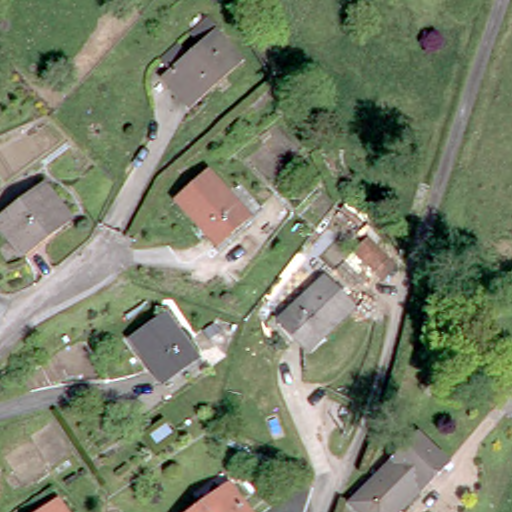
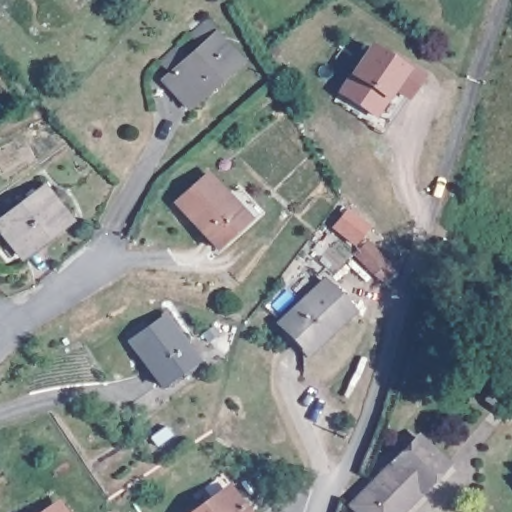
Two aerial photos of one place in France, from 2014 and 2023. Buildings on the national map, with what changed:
unchanged [(195,29),(208,17),(241,58),(190,102),(167,75),(175,67),(165,54),(183,37),(195,51),(205,42),(195,29)]
new [(405,101),(382,134),(333,102),(337,92),(368,44),(385,55),(390,49),(425,75),(405,101)]
unchanged [(169,204),(204,171),(222,191),(232,182),(255,208),(210,250),(169,204)]
unchanged [(65,222),(18,253),(0,226),(0,214),(43,187),(65,222)]
unchanged [(387,266),(375,277),(358,259),(369,248),(387,266)]
unchanged [(347,303),(305,348),(277,321),(320,276),(347,303)]
unchanged [(197,358),(162,386),(128,338),(163,312),(197,358)]
unchanged [(512,419),(497,403),(512,387),(512,419)]
unchanged [(407,482),(420,471),(401,451),(418,434),(451,464),(417,492),(407,482)]
unchanged [(417,492),(396,512),(351,512),(344,503),(401,451),(420,471),(407,482),(417,492)]
unchanged [(194,512),(222,486),(244,512),(194,512)]
unchanged [(39,512),(54,501),(63,512),(39,512)]

